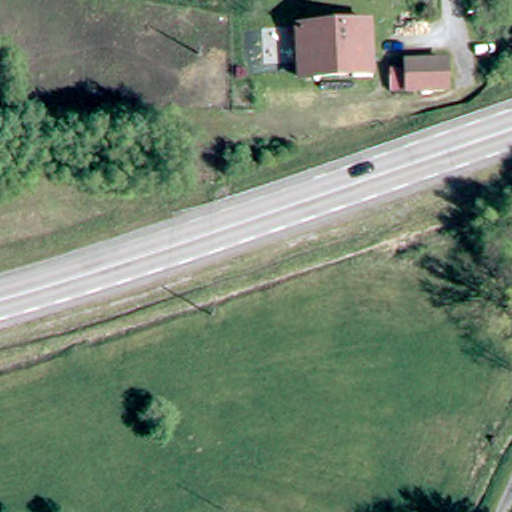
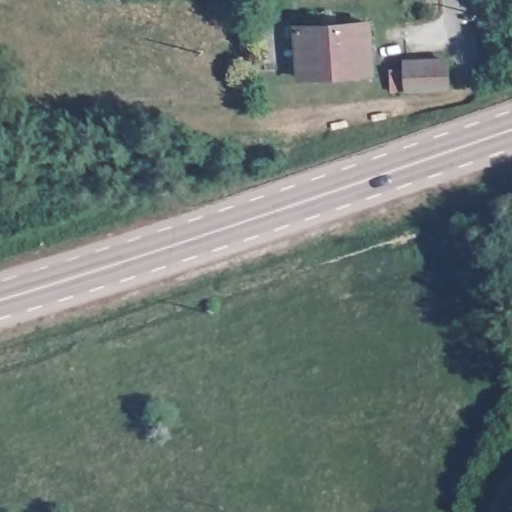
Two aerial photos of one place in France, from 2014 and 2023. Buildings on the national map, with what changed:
unchanged [(373,48),(373,77),(305,80),(302,33),(372,29),(373,48)]
unchanged [(412,70),(449,68),(450,94),(415,96),(412,70)]

